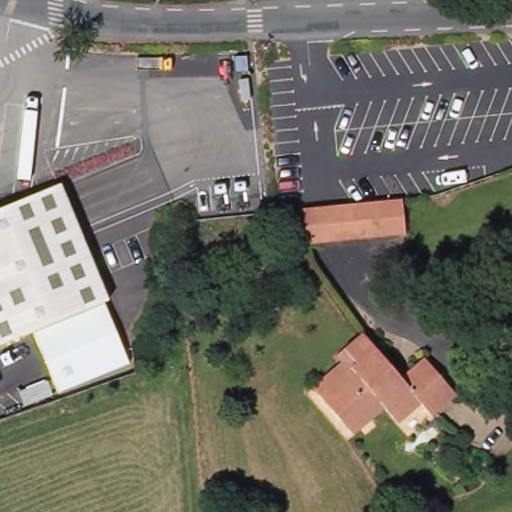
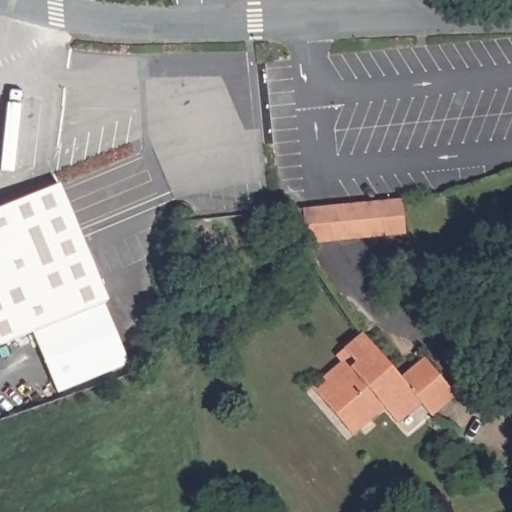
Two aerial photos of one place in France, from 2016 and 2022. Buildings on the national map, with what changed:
unchanged [(132,365),(57,395),(27,335),(0,349),(0,211),(62,183),(109,301),(132,365)]
unchanged [(405,234),(304,244),(302,223),(270,226),(268,212),(302,209),(401,199),(405,234)]
unchanged [(397,413),(389,404),(357,431),(322,391),(316,383),(345,358),(339,351),(347,344),(367,329),(405,373),(428,353),(460,390),(436,411),(425,399),(402,419),(397,413)]

